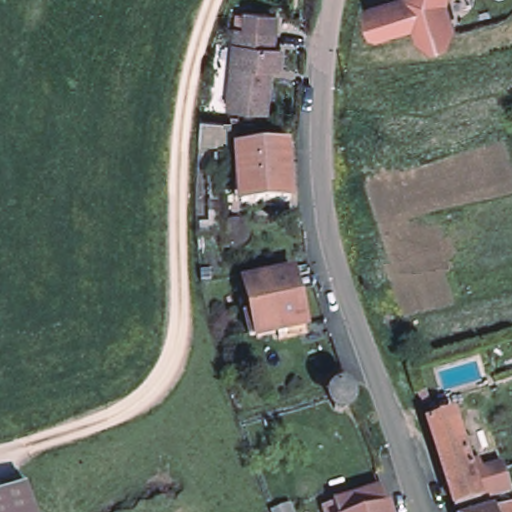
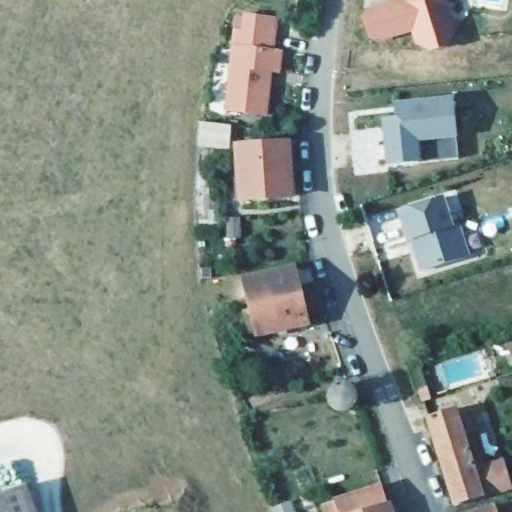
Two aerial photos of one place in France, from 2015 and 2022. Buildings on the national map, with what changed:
unchanged [(368,37),(361,18),(364,11),(401,0),(444,0),(443,4),(451,31),(444,44),(429,47),(416,41),(410,28),(373,41),(368,37)]
unchanged [(284,44),(281,66),(269,65),(268,76),(271,76),(268,111),(228,106),(239,23),(244,24),(246,7),(278,11),(276,28),(274,43),(284,44)]
new [(420,162),(387,164),(381,118),(394,116),(393,101),(453,96),(457,138),(458,156),(420,162)]
unchanged [(230,124),(226,146),(196,141),(197,118),(230,124)]
unchanged [(285,141),(289,196),(239,198),(236,144),(245,144),(244,139),(258,138),(258,143),(285,141)]
new [(444,196),(454,225),(460,222),(471,255),(420,272),(413,239),(407,241),(398,210),(444,196)]
unchanged [(292,272),(304,326),(260,337),(246,282),(292,272)]
unchanged [(426,391),(430,402),(423,405),(419,393),(426,391)]
unchanged [(448,478),(428,415),(454,407),(471,459),(481,456),(484,466),(503,460),(512,487),(483,496),(456,504),(448,478)]
unchanged [(37,512),(0,512),(0,490),(26,481),(37,512)]
unchanged [(382,485),(387,502),(390,512),(326,512),(324,505),(382,485)]
unchanged [(274,512),(272,506),(294,499),(298,512),(274,512)]
unchanged [(497,512),(495,504),(512,499),(512,512),(497,512)]
unchanged [(497,512),(472,512),(495,504),(497,512)]

